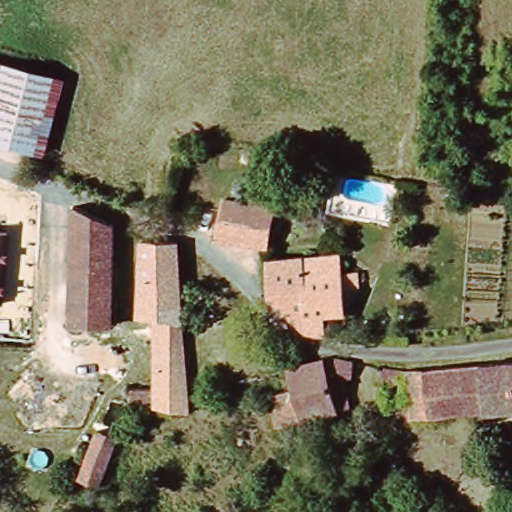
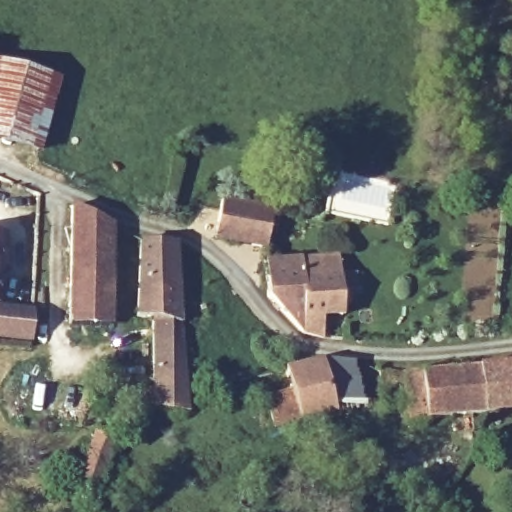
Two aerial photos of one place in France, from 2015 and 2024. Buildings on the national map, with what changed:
unchanged [(62,73),(42,152),(0,141),(0,57),(62,73)]
unchanged [(310,171),(323,173),(322,186),(308,183),(310,171)]
unchanged [(274,248),(236,245),(220,235),(230,201),(278,209),(274,248)]
unchanged [(117,329),(74,325),(79,208),(120,228),(117,329)]
unchanged [(6,228),(1,306),(0,305),(0,227),(6,228)]
unchanged [(144,324),(146,241),(184,247),(186,302),(192,395),(192,413),(139,402),(140,389),(162,391),(161,327),(144,324)]
unchanged [(306,257),(332,253),(333,272),(351,273),(350,288),(335,289),(335,308),(316,311),(315,325),(290,313),(263,289),(262,265),(306,257)]
new [(1,306),(35,309),(33,343),(0,339),(0,305),(1,306)]
unchanged [(296,390),(292,366),(340,357),(352,364),(356,411),(305,422),(278,428),(271,397),(296,390)]
unchanged [(512,365),(512,414),(416,423),(414,369),(512,365)]
unchanged [(100,433),(125,444),(106,492),(84,482),(100,433)]

